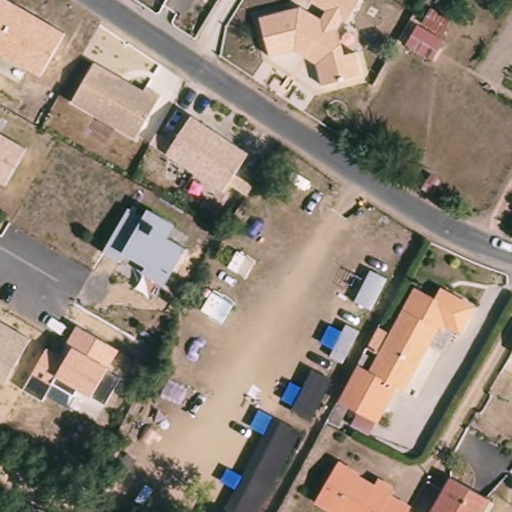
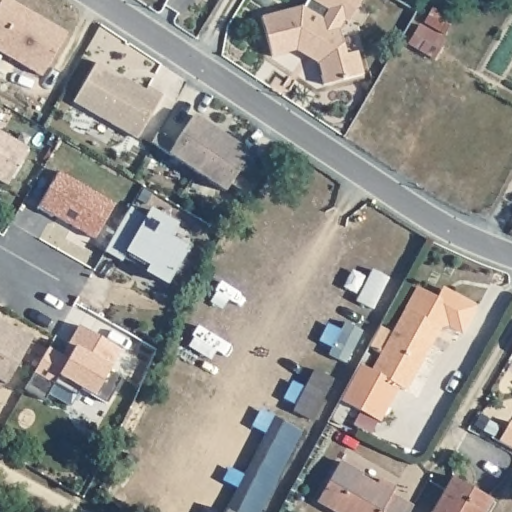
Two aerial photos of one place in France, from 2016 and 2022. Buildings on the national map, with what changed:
unchanged [(67,33),(41,75),(0,51),(0,0),(9,0),(67,33)]
unchanged [(302,6),(322,17),(327,8),(313,0),(360,0),(348,21),(342,19),(338,27),(345,54),(356,51),(361,76),(323,84),(318,62),(295,50),(269,55),(260,17),(302,6)]
unchanged [(452,35),(441,54),(413,39),(424,19),(452,35)]
unchanged [(96,62),(142,90),(145,86),(161,96),(135,136),(73,101),(96,62)]
unchanged [(249,152),(225,191),(166,154),(149,142),(156,131),(174,142),(193,114),(249,152)]
unchanged [(6,182),(0,179),(0,134),(24,148),(6,182)]
new [(57,172),(113,205),(93,240),(51,215),(51,217),(36,209),(57,172)]
unchanged [(143,216),(148,209),(175,223),(167,237),(186,247),(166,284),(143,272),(147,265),(124,252),(119,259),(104,251),(127,206),(143,216)]
unchanged [(419,288),(438,299),(444,290),(453,295),(477,308),(463,333),(451,327),(441,331),(408,391),(400,387),(380,421),(343,400),(362,365),(375,371),(384,355),(371,348),(376,338),(382,327),(395,335),(419,288)]
unchanged [(6,382),(0,379),(0,321),(31,340),(6,382)]
unchanged [(45,347),(59,355),(78,326),(116,349),(105,367),(118,376),(103,402),(76,388),(73,395),(50,383),(40,400),(21,387),(45,347)]
unchanged [(332,380),(310,421),(291,411),(313,371),(332,380)]
unchanged [(258,512),(224,512),(272,417),(300,431),(258,512)]
unchanged [(135,465),(122,483),(111,477),(124,458),(135,465)]
unchanged [(343,462),(363,475),(362,477),(378,487),(382,478),(397,487),(393,495),(415,507),(412,512),(339,512),(321,501),(343,462)]
unchanged [(485,512),(436,512),(455,477),(493,498),(485,512)]

